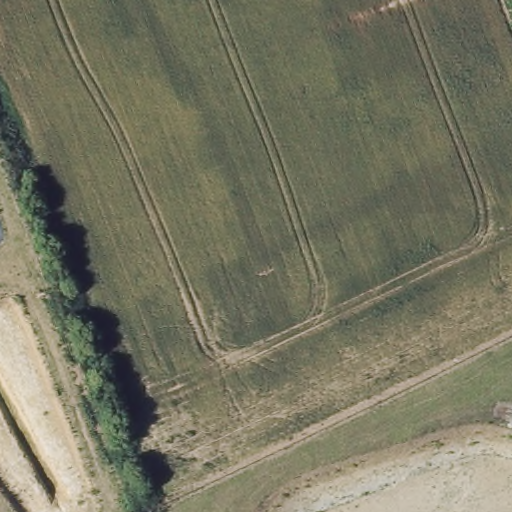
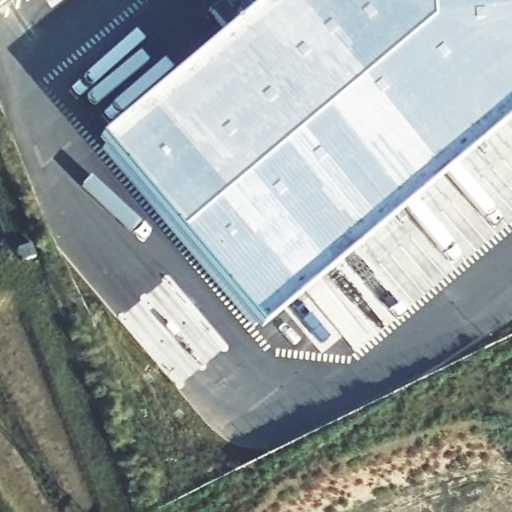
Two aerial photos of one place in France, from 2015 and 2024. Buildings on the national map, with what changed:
new [(266,0),(512,0),(512,119),(259,331),(100,140),(266,0)]

